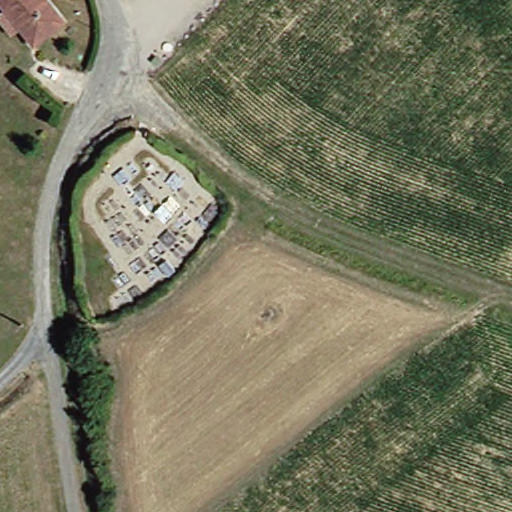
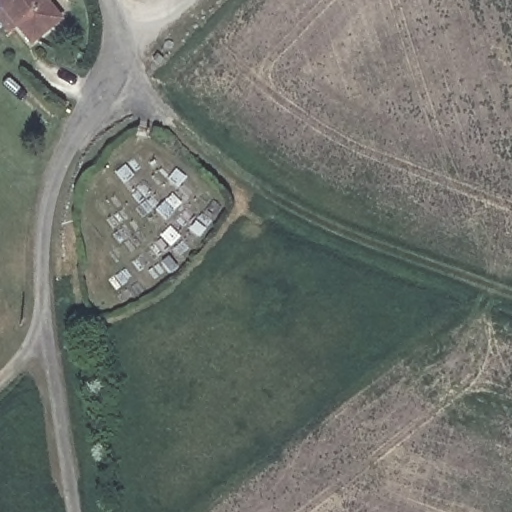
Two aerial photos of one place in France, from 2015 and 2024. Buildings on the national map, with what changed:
unchanged [(41,45),(4,0),(51,0),(69,22),(41,45)]

